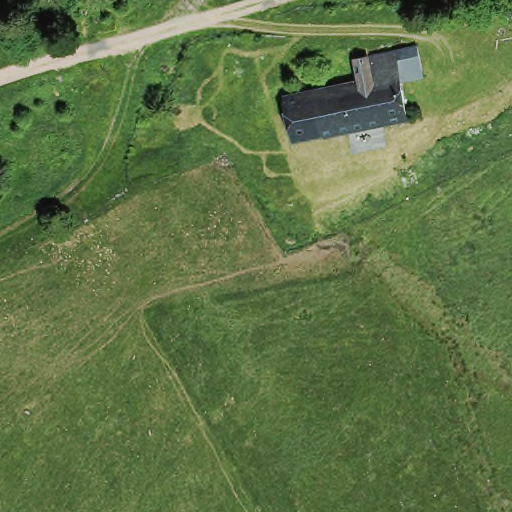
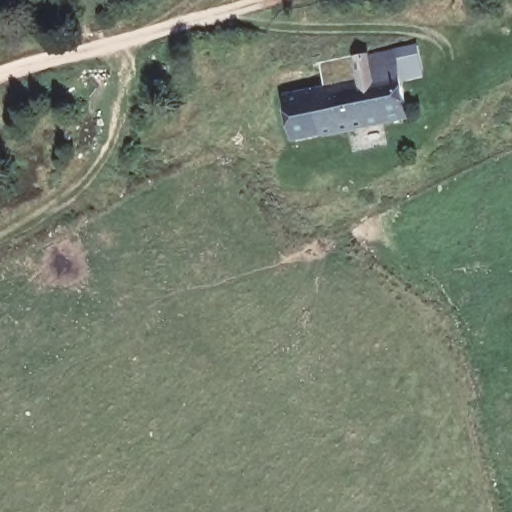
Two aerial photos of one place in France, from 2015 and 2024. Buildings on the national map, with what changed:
unchanged [(373,57),(399,52),(410,118),(385,123),(373,57)]
unchanged [(360,80),(355,60),(373,57),(385,123),(296,139),(286,93),(360,80)]

